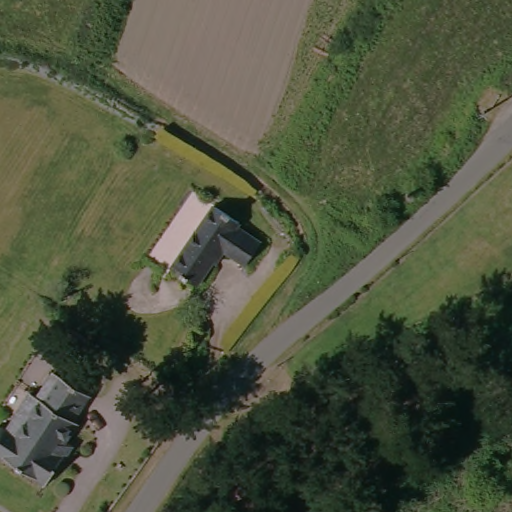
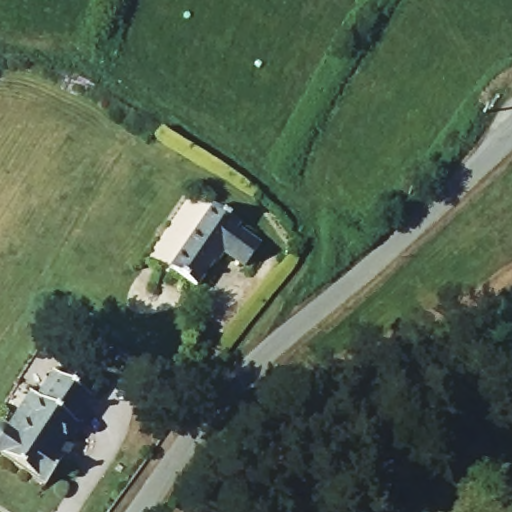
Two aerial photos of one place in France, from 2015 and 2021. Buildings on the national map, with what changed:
unchanged [(169,270),(174,263),(214,211),(237,227),(232,233),(256,249),(240,270),(218,255),(198,281),(194,287),(169,270)]
unchanged [(89,395),(75,416),(81,420),(69,437),(26,408),(51,370),(89,395)]
unchanged [(60,450),(68,455),(49,483),(0,450),(0,426),(16,425),(26,408),(69,437),(60,450)]

